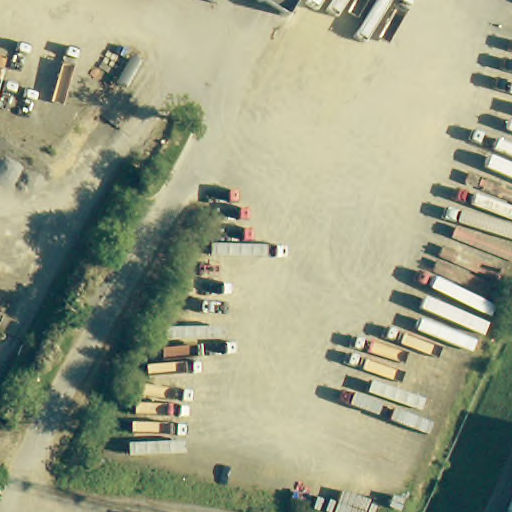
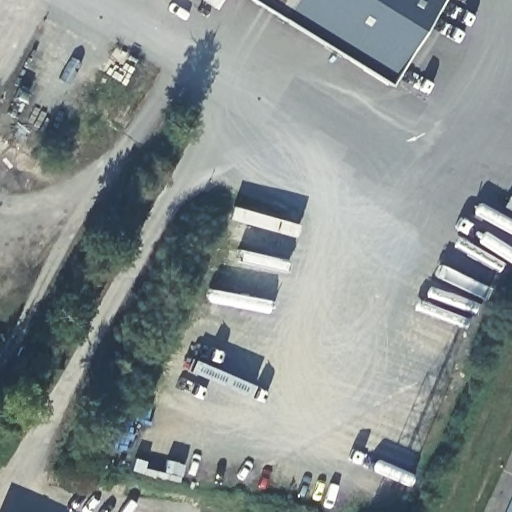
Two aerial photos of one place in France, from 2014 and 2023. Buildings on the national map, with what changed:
unchanged [(191,0),(214,0),(207,10),(191,0)]
unchanged [(258,11),(240,0),(291,0),(277,22),(258,11)]
new [(277,22),(291,0),(439,0),(388,86),(277,22)]

